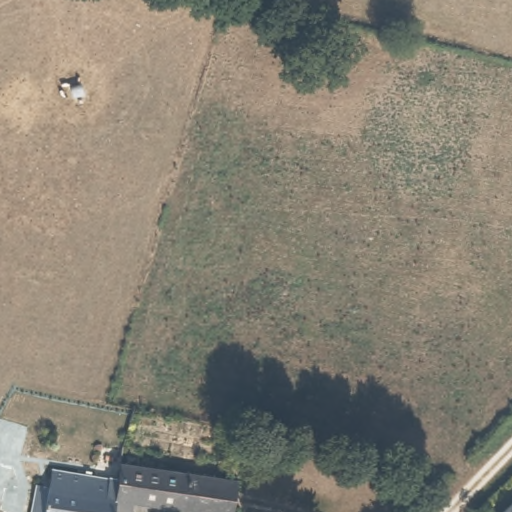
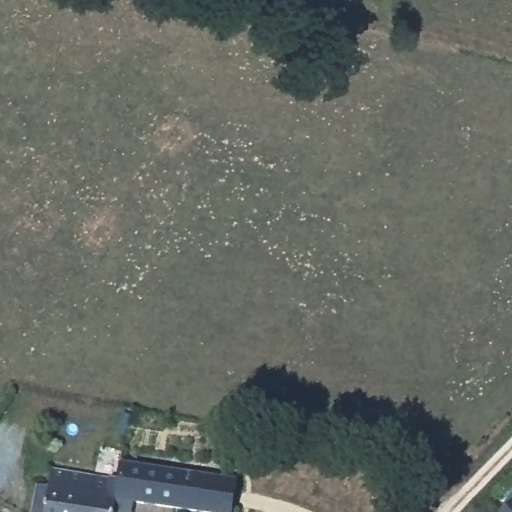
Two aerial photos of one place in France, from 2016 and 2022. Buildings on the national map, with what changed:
unchanged [(137,497),(134,512),(117,509),(124,476),(126,461),(167,467),(160,501),(137,497)]
unchanged [(53,480),(57,466),(95,471),(88,512),(36,512),(42,477),(53,480)]
unchanged [(233,512),(214,509),(160,501),(167,467),(220,475),(241,478),(236,512),(233,512)]
unchanged [(117,509),(117,511),(117,512),(88,512),(95,471),(124,476),(117,509)]

